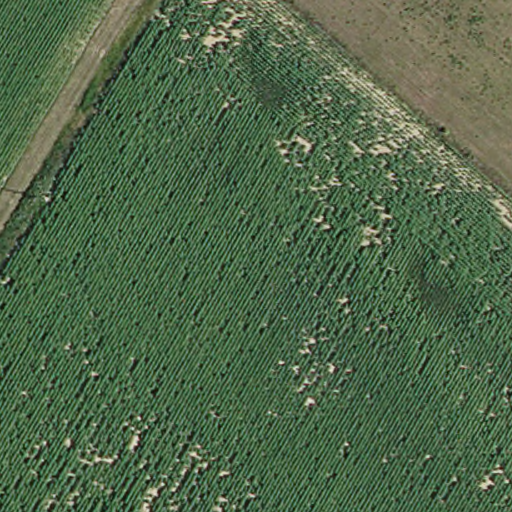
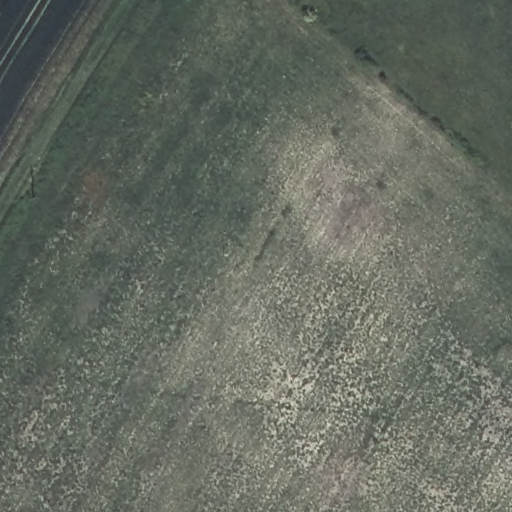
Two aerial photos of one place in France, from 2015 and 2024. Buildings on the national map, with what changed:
[]

